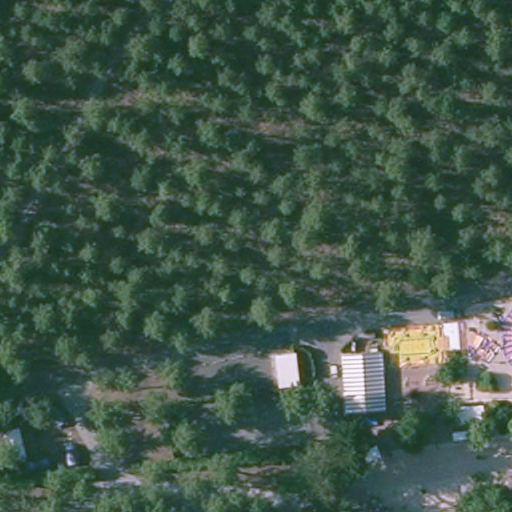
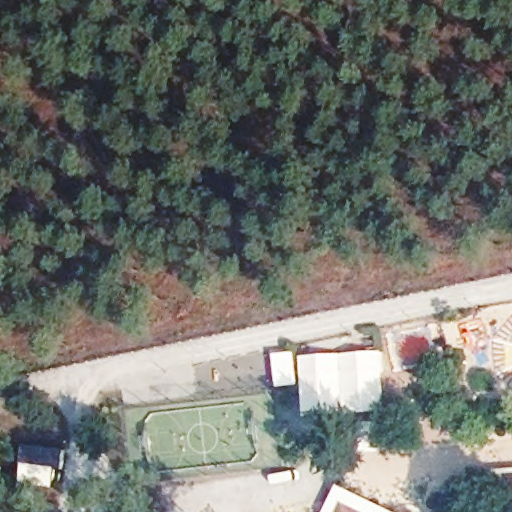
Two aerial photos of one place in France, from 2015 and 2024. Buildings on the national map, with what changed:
unchanged [(346,412),(342,354),(382,351),(386,409),(346,412)]
new [(340,487),(393,512),(327,512),(340,487)]

